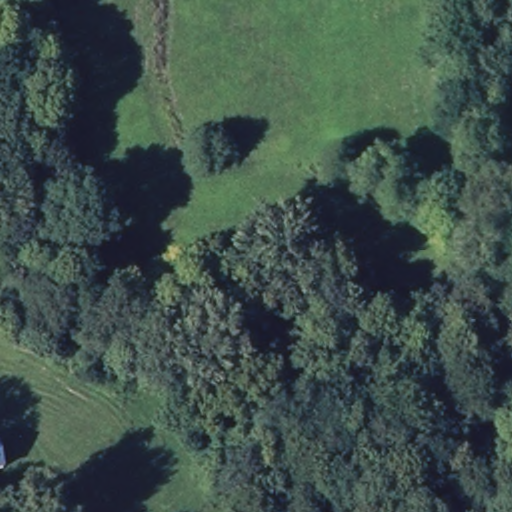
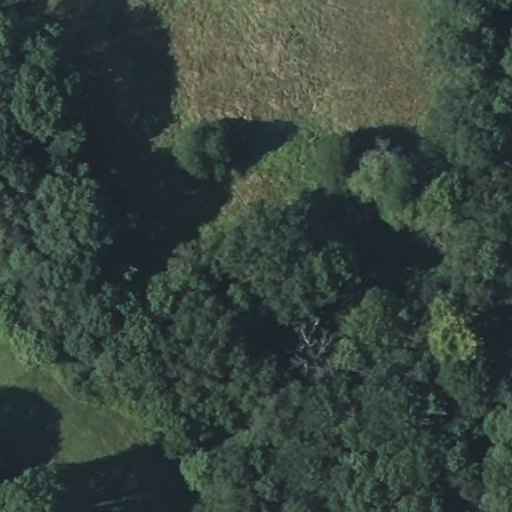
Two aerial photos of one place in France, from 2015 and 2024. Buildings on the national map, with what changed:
unchanged [(17,435),(24,462),(0,466),(0,439),(17,435)]

